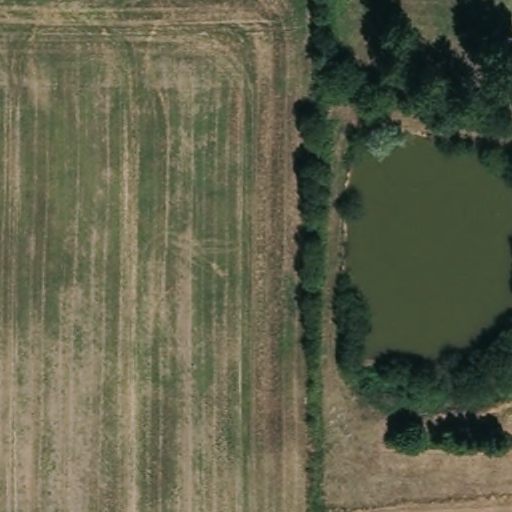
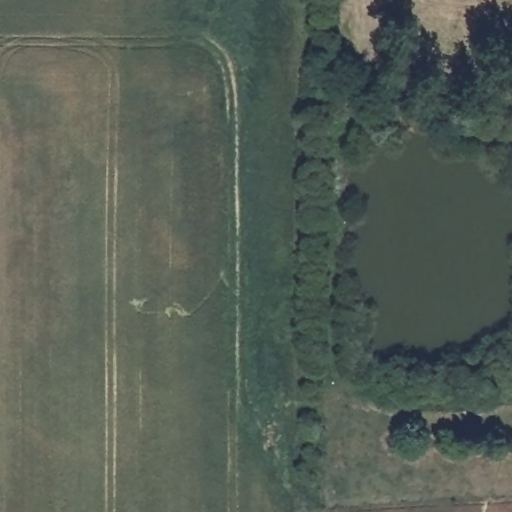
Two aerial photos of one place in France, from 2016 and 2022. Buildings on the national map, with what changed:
unchanged [(512,70),(512,98),(505,98),(507,70),(512,70)]

